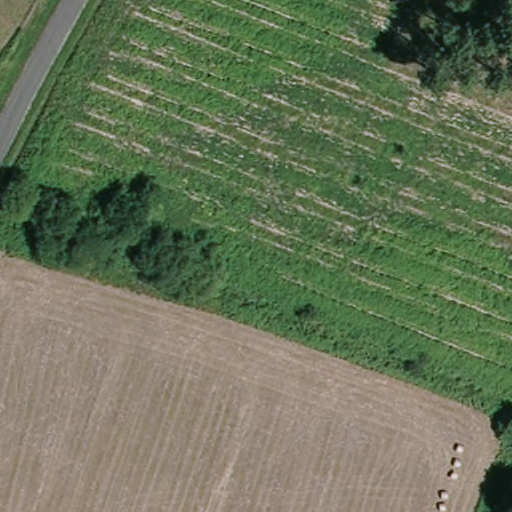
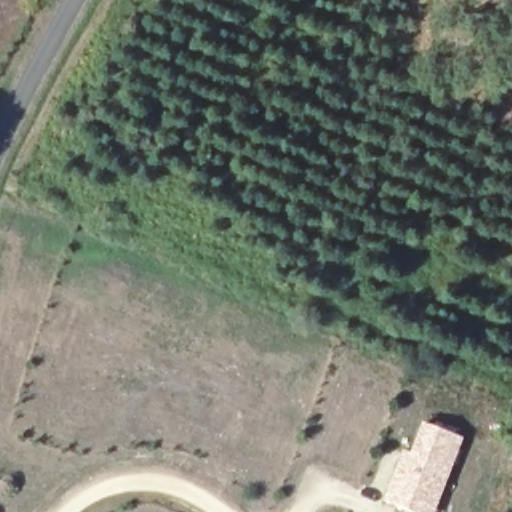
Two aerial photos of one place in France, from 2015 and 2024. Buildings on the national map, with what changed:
new [(433,512),(412,512),(382,500),(401,449),(409,452),(421,421),(461,438),(433,512)]

